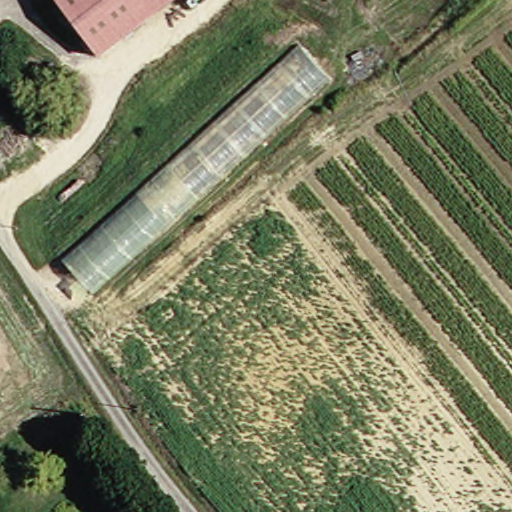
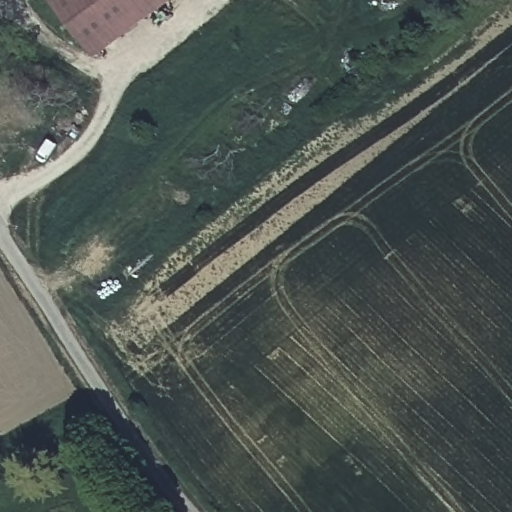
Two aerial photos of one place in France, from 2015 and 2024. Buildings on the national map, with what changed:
unchanged [(62,0),(96,0),(74,17),(62,0)]
unchanged [(74,17),(96,0),(164,0),(102,49),(74,17)]
demolished [(374,20),(395,0),(461,0),(405,50),(374,20)]
demolished [(335,80),(97,297),(64,260),(305,46),(335,80)]

